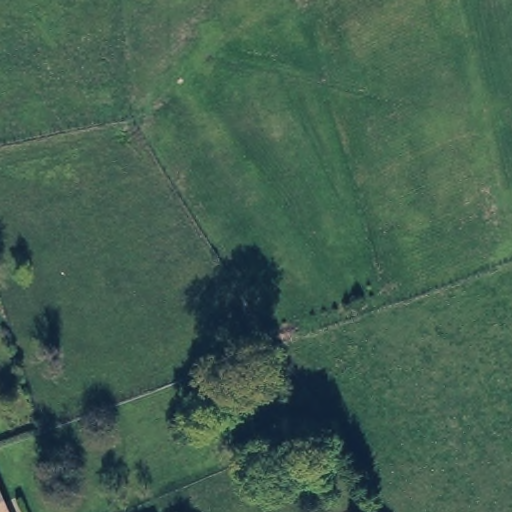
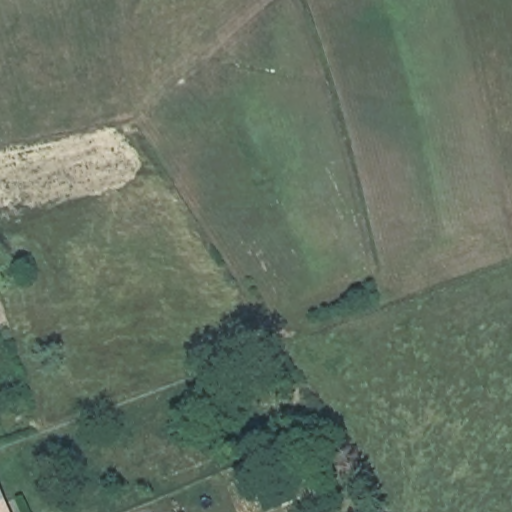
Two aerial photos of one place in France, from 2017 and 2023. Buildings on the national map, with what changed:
unchanged [(2,512),(0,512),(0,507),(2,512)]

